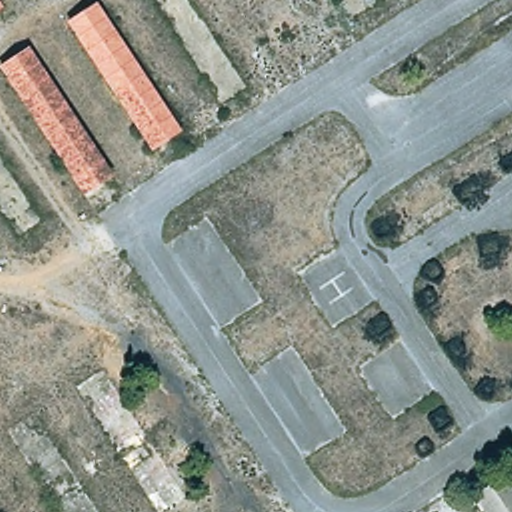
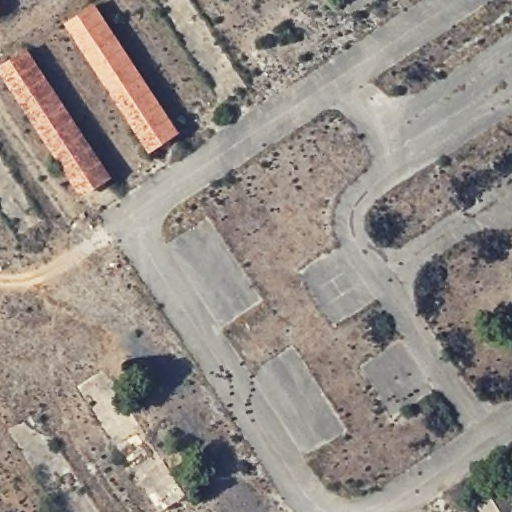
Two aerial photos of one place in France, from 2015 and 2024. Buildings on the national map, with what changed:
unchanged [(0,3),(0,0),(2,2),(0,3)]
unchanged [(92,0),(99,0),(178,124),(145,145),(65,15),(92,0)]
unchanged [(112,164),(77,187),(0,70),(0,61),(29,40),(112,164)]
unchanged [(512,487),(512,512),(483,512),(468,489),(500,471),(512,487)]

